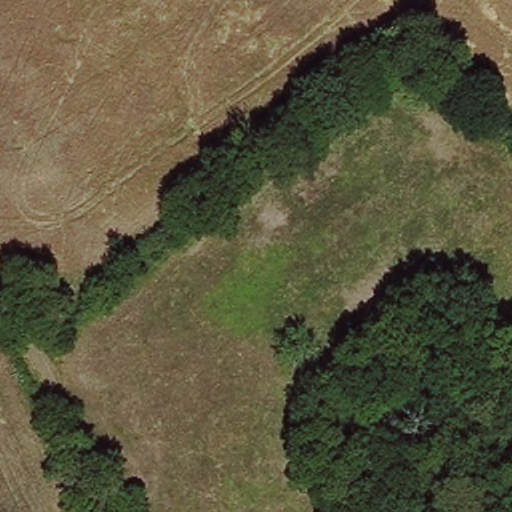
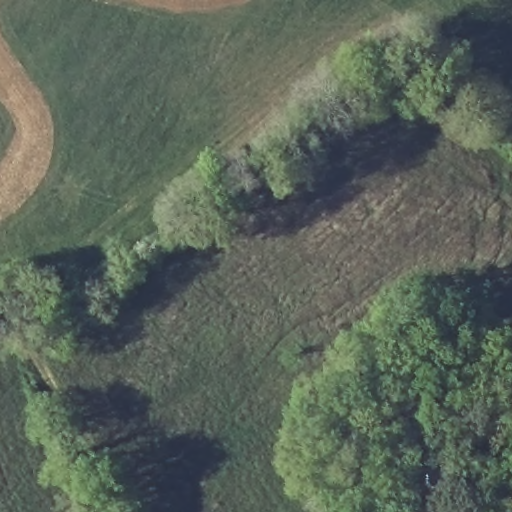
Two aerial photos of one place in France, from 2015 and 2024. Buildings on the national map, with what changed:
unchanged [(431,424),(445,416),(452,430),(439,437),(431,424)]

